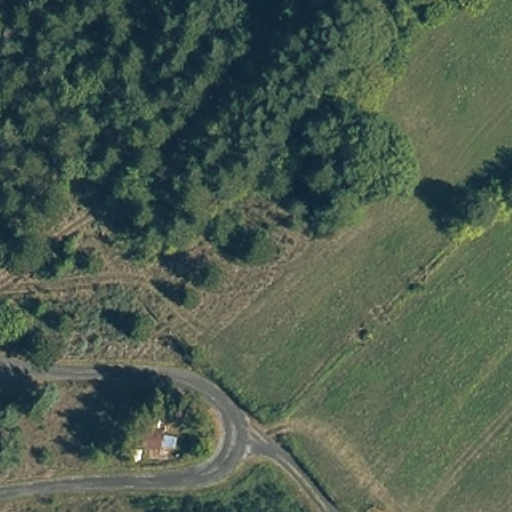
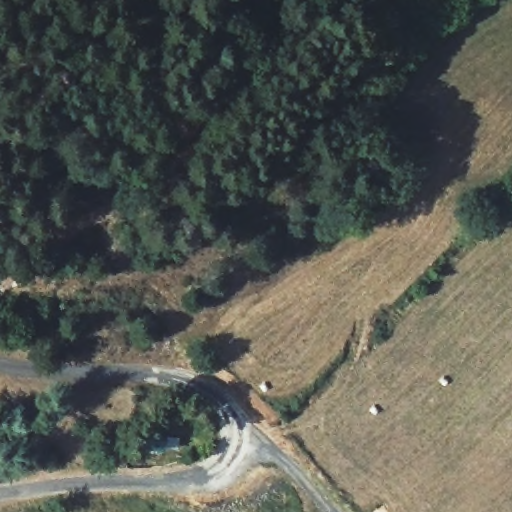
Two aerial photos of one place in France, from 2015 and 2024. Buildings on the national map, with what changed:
unchanged [(135,427),(165,432),(165,459),(131,452),(135,427)]

